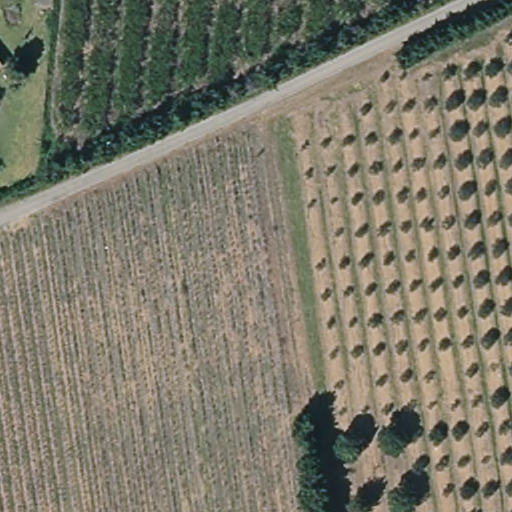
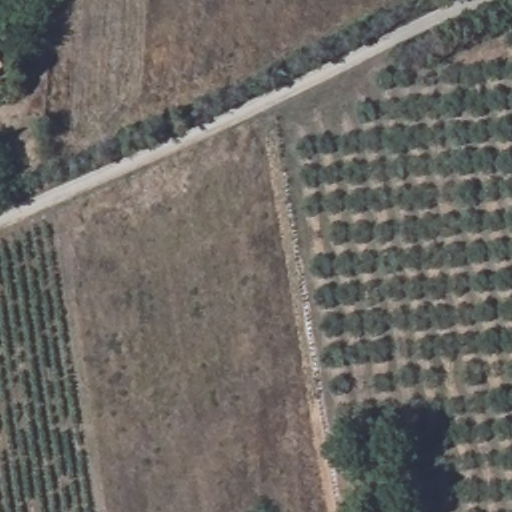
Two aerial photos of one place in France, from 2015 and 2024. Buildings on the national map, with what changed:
unchanged [(0,72),(0,58),(7,67),(0,72)]

